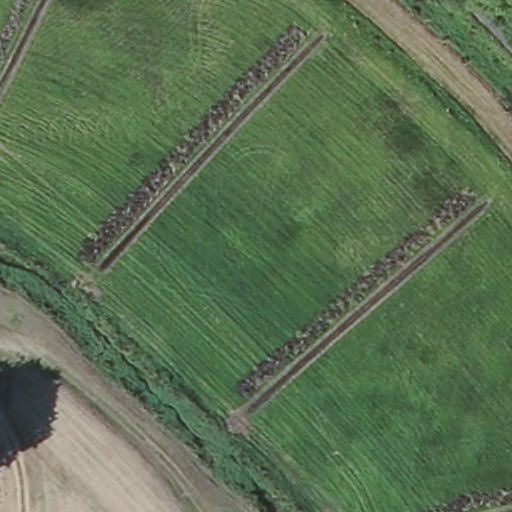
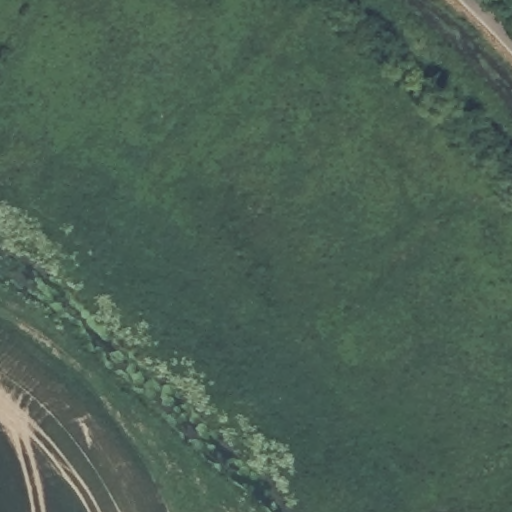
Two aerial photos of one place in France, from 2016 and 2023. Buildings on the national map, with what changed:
[]

